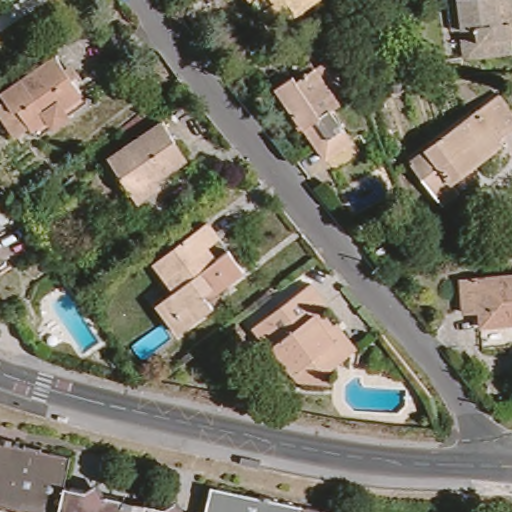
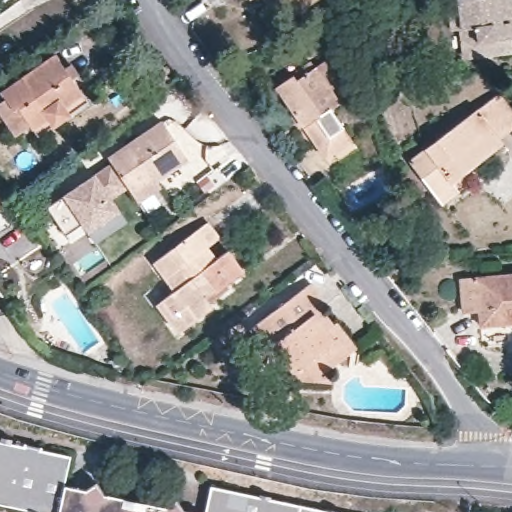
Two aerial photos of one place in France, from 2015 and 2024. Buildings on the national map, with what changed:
unchanged [(300,12),(296,8),(274,24),(265,11),(272,6),(268,0),(318,0),(300,12)]
unchanged [(469,49),(466,21),(453,21),(450,0),(512,0),(512,44),(469,49)]
unchanged [(355,136),(331,152),(283,83),(298,71),(303,76),(321,62),(331,55),(354,91),(346,97),(335,104),(355,136)]
unchanged [(30,126),(16,135),(0,112),(0,105),(6,100),(3,95),(57,57),(83,93),(88,102),(71,114),(53,127),(38,137),(33,130),(30,126)]
unchanged [(448,204),(440,194),(416,162),(504,94),(512,104),(512,132),(504,138),(507,142),(506,144),(456,182),(463,191),(448,204)]
unchanged [(148,112),(153,121),(129,137),(124,129),(148,112)]
unchanged [(165,121),(188,159),(161,179),(164,185),(141,200),(113,159),(165,121)]
new [(65,195),(95,173),(113,160),(131,187),(113,198),(121,211),(128,221),(95,242),(88,232),(81,221),(65,232),(49,206),(65,195)]
unchanged [(159,302),(168,297),(178,290),(158,262),(211,222),(222,239),(210,247),(220,258),(230,250),(246,270),(211,297),(216,306),(200,318),(181,332),(159,302)]
unchanged [(487,326),(486,309),(469,310),(466,278),(512,274),(512,324),(487,326)]
unchanged [(361,342),(355,347),(328,367),(335,375),(305,374),(278,340),(273,342),(258,321),(316,278),(331,298),(326,302),(338,320),(343,317),(361,342)]
unchanged [(5,438),(17,440),(16,444),(29,447),(30,443),(47,447),(46,450),(75,457),(69,486),(141,502),(191,512),(31,512),(31,510),(0,502),(0,440),(4,442),(5,438)]
unchanged [(264,497),(265,493),(277,497),(277,500),(335,512),(336,508),(348,512),(347,512),(211,512),(217,487),(264,497)]

